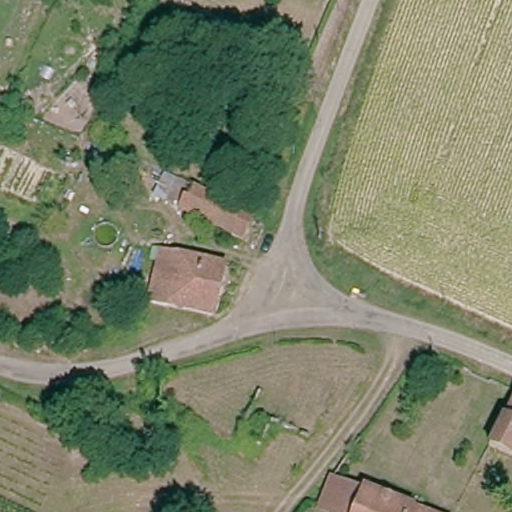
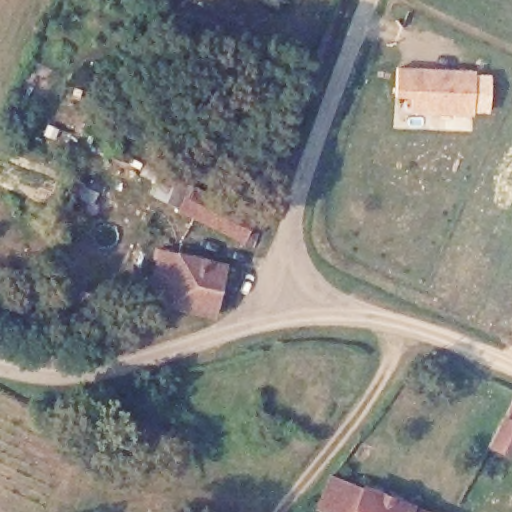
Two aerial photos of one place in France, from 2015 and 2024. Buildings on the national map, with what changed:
new [(476,71),(474,116),(409,112),(410,99),(398,99),(397,67),(476,71)]
unchanged [(237,240),(178,209),(181,204),(166,195),(172,178),(189,186),(248,218),(237,240)]
unchanged [(151,305),(162,253),(227,268),(215,321),(151,305)]
unchanged [(512,398),(512,419),(506,416),(512,398)]
unchanged [(504,421),(512,425),(512,459),(492,451),(504,421)]
unchanged [(343,480),(419,512),(322,512),(336,477),(343,480)]

